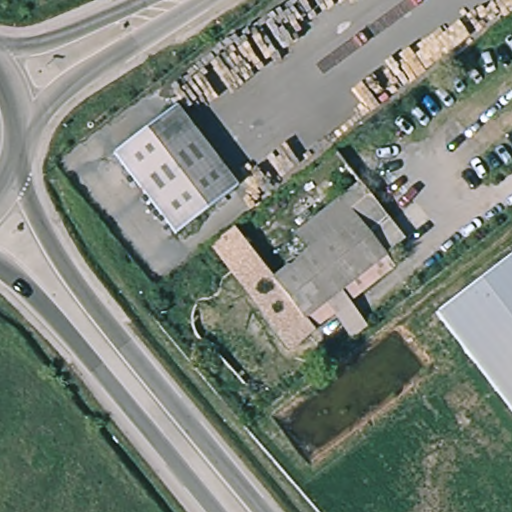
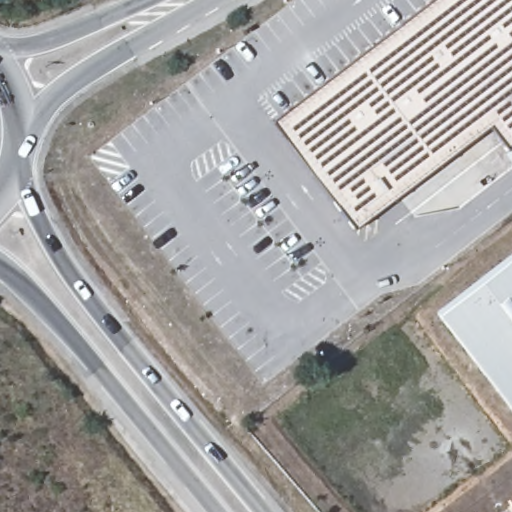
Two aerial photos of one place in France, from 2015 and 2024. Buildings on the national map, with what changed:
new [(505,150),(487,126),(352,227),(271,121),(430,0),(512,0),(512,144),(505,150)]
demolished [(238,185),(178,231),(115,152),(176,107),(238,185)]
demolished [(270,279),(329,234),(314,217),(360,180),(392,216),(369,234),(384,253),(301,318),(270,279)]
unchanged [(438,314),(512,254),(512,410),(438,314)]

